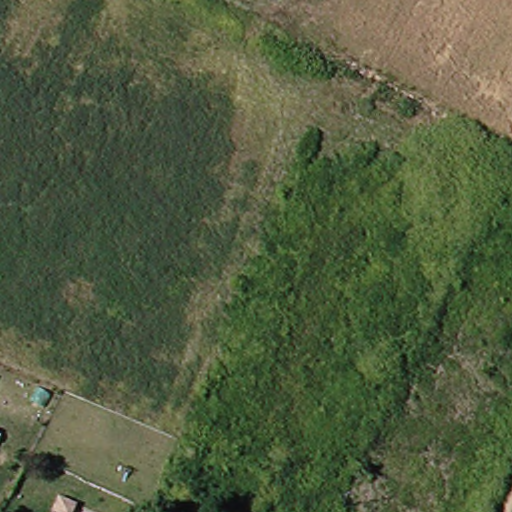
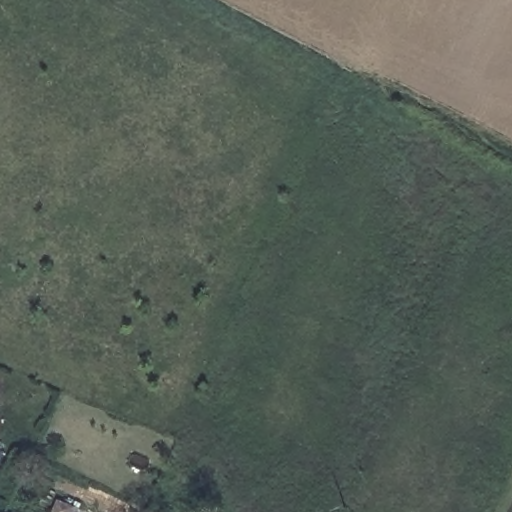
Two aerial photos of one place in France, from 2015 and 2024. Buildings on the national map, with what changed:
unchanged [(78,512),(58,512),(64,499),(80,507),(78,512)]

